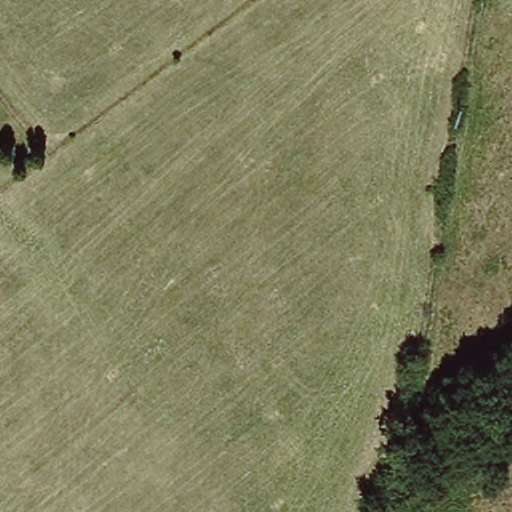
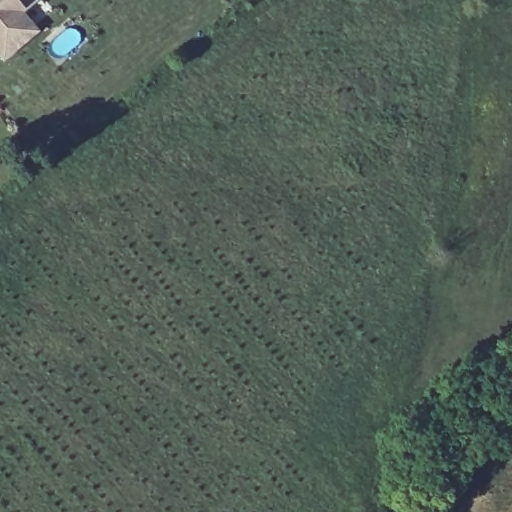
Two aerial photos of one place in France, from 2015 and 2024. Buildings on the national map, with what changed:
new [(0,58),(0,0),(33,0),(17,13),(32,32),(21,41),(0,58)]

